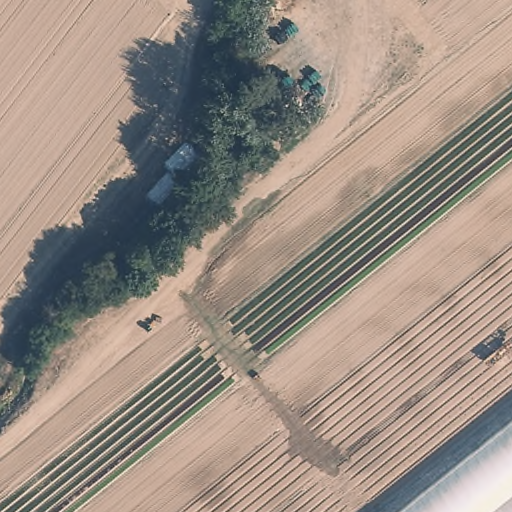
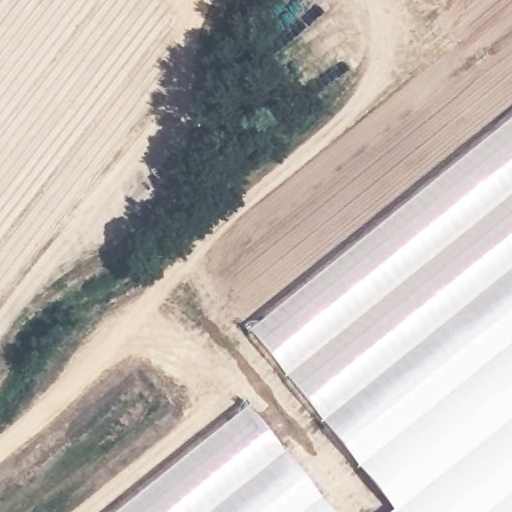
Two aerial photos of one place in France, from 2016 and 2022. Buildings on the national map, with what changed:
new [(394,512),(392,512),(248,335),(512,122),(512,417),(394,512)]
new [(332,512),(119,512),(247,409),(332,512)]
unchanged [(512,417),(512,512),(394,512),(512,417)]

